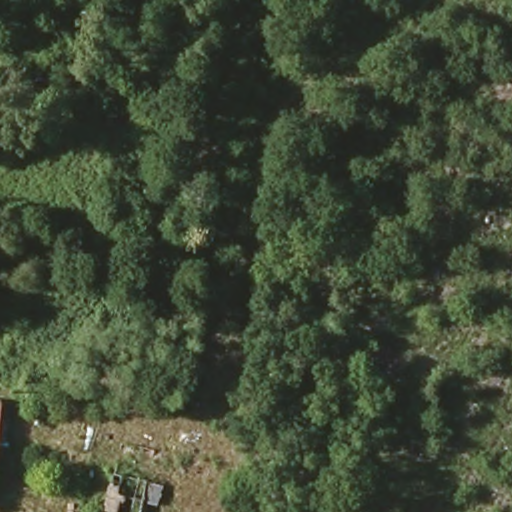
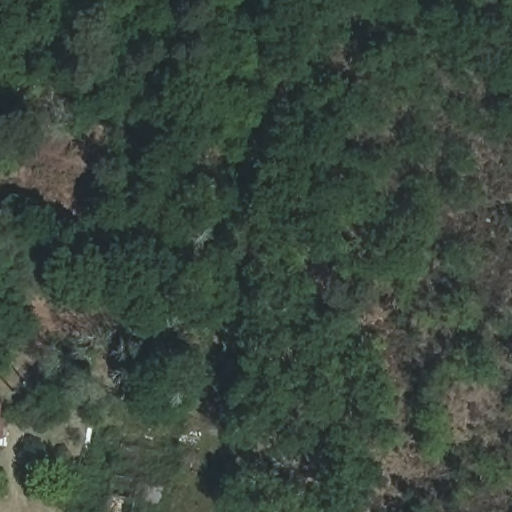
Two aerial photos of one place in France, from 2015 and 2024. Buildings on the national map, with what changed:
unchanged [(6,402),(0,455),(0,401),(6,402)]
unchanged [(114,503),(135,430),(165,437),(146,511),(146,512),(114,503)]

